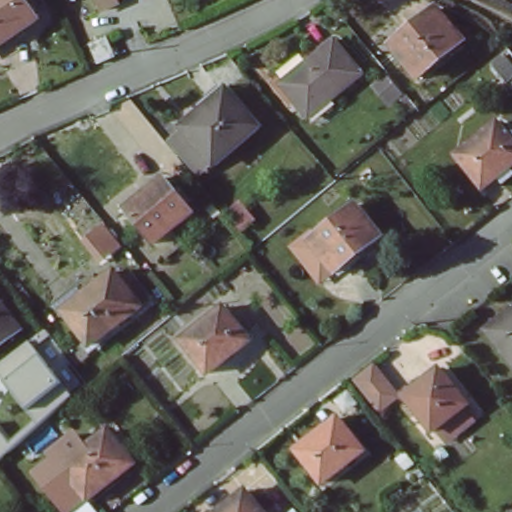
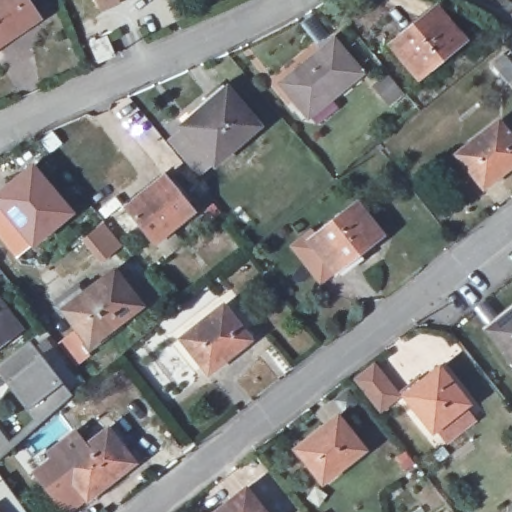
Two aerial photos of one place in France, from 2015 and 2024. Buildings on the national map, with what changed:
unchanged [(0,0),(25,0),(38,19),(0,45),(0,0)]
unchanged [(118,5),(102,12),(97,0),(115,0),(118,5)]
unchanged [(418,79),(392,47),(437,9),(464,41),(418,79)]
unchanged [(106,39),(114,57),(98,64),(91,45),(106,39)]
unchanged [(308,118),(282,85),(334,42),(361,74),(308,118)]
unchanged [(208,165),(178,128),(222,91),(253,127),(208,165)]
unchanged [(482,188),(457,156),(499,124),(512,142),(512,166),(482,188)]
new [(0,191),(33,163),(75,214),(32,248),(16,260),(0,239),(0,191)]
unchanged [(154,245),(126,210),(164,179),(193,214),(154,245)]
unchanged [(336,274),(310,241),(355,205),(381,238),(336,274)]
unchanged [(89,346),(58,305),(79,290),(83,295),(114,272),(140,307),(89,346)]
unchanged [(0,305),(19,330),(0,343),(0,305)]
unchanged [(209,373),(183,339),(224,308),(249,341),(209,373)]
unchanged [(487,330),(512,312),(512,363),(487,330)]
unchanged [(72,398),(44,423),(39,427),(0,378),(0,365),(30,342),(72,398)]
new [(353,380),(375,362),(402,395),(380,413),(353,380)]
unchanged [(432,431),(405,396),(439,371),(467,405),(432,431)]
unchanged [(324,483),(298,450),(319,433),(322,436),(340,422),(363,452),(324,483)]
unchanged [(140,459),(74,512),(65,512),(35,472),(52,458),(49,448),(80,430),(88,442),(116,427),(140,459)]
new [(0,461),(0,431),(14,449),(0,461)]
new [(0,512),(0,478),(27,512),(0,512)]
unchanged [(234,506),(248,495),(261,512),(221,512),(232,504),(234,506)]

